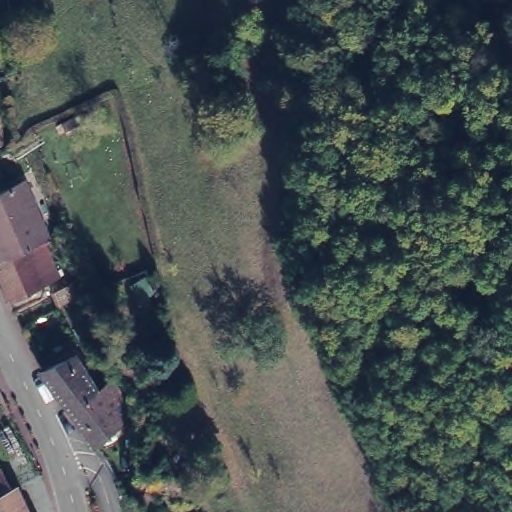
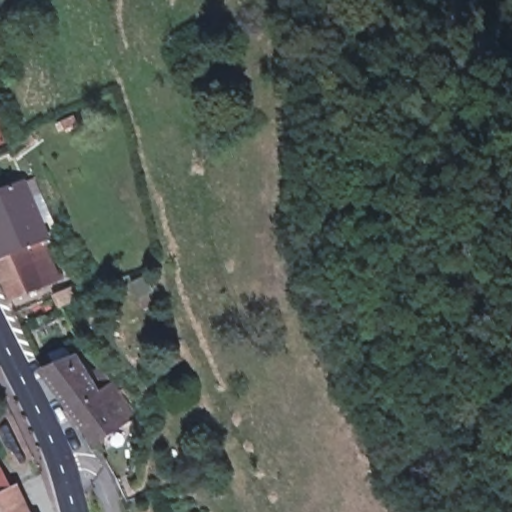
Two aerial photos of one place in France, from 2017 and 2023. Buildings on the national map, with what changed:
unchanged [(5,134),(0,136),(0,123),(5,134)]
unchanged [(0,282),(0,185),(18,178),(43,231),(37,235),(55,270),(5,295),(0,282)]
unchanged [(57,410),(63,406),(37,373),(35,370),(93,351),(127,414),(90,440),(71,416),(65,420),(57,410)]
unchanged [(5,486),(13,482),(28,512),(0,512),(0,476),(5,486)]

